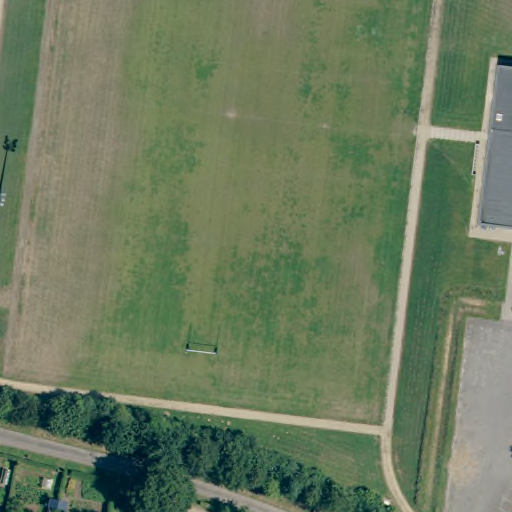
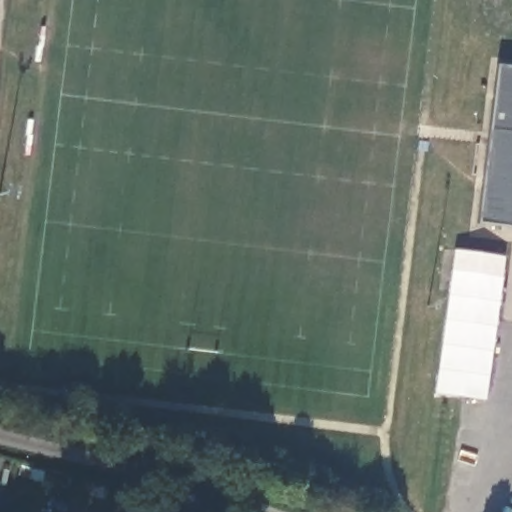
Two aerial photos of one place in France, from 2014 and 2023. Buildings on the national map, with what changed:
unchanged [(512,228),(483,225),(502,65),(512,66),(512,228)]
new [(484,401),(433,394),(453,250),(505,256),(484,401)]
demolished [(49,509),(52,499),(71,504),(68,512),(62,512),(49,509)]

